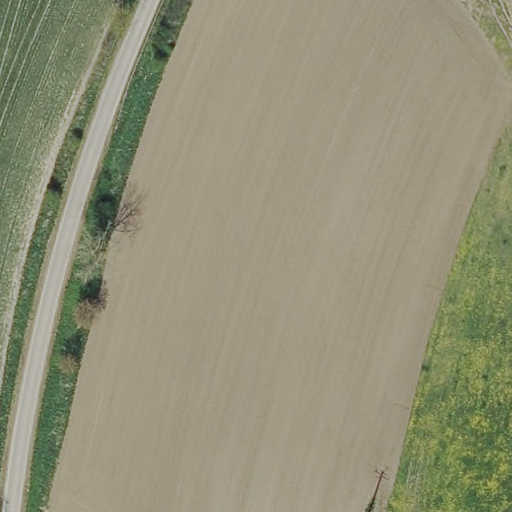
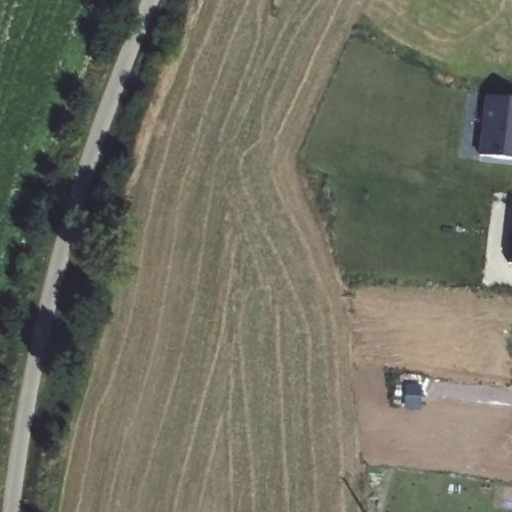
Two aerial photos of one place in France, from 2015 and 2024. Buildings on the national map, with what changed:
new [(512,99),(512,159),(477,154),(485,95),(512,99)]

